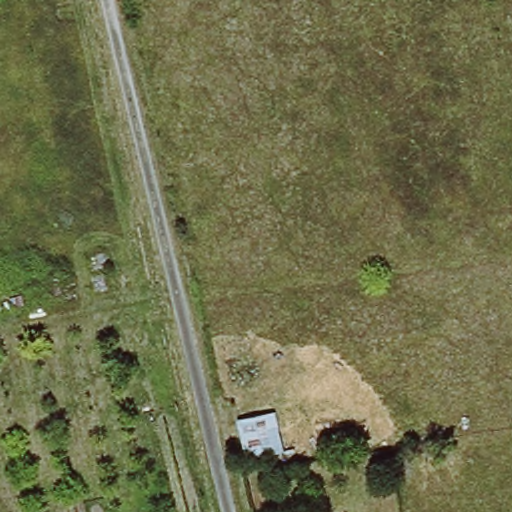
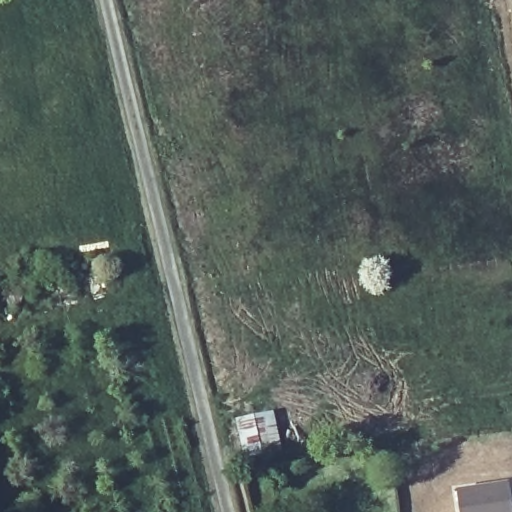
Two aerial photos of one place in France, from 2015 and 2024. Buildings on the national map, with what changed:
unchanged [(242,462),(233,420),(269,416),(279,454),(242,462)]
new [(509,480),(512,498),(512,512),(461,512),(457,490),(509,480)]

